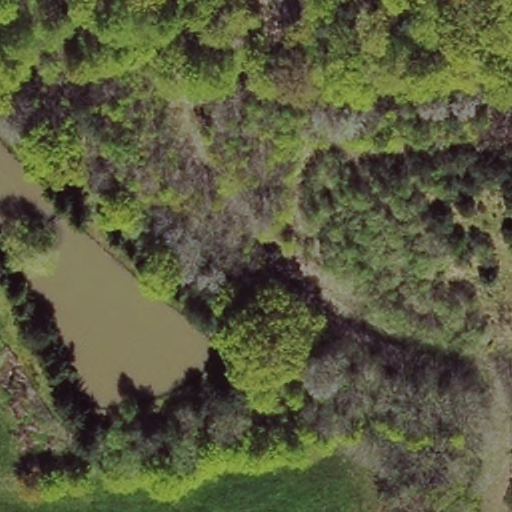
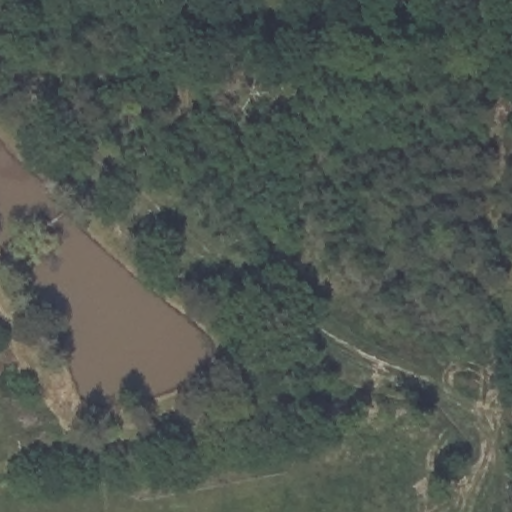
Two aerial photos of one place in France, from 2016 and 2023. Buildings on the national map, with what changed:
unchanged [(10,100),(0,106),(0,88),(10,100)]

